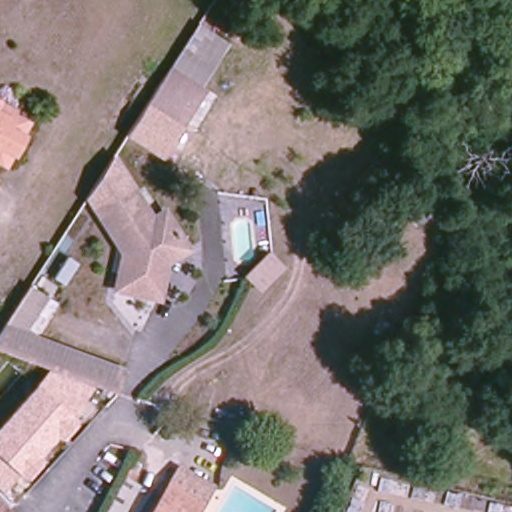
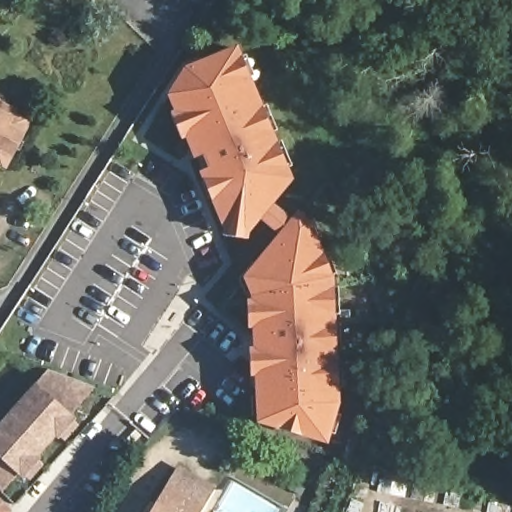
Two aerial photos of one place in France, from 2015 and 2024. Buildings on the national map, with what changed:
demolished [(175,7),(165,0),(179,0),(175,7)]
demolished [(202,88),(207,91),(164,161),(123,137),(197,22),(228,42),(202,88)]
new [(230,236),(231,226),(208,170),(214,167),(209,155),(203,157),(197,145),(177,95),(193,69),(240,47),(295,179),(254,229),(253,239),(230,236)]
new [(260,75),(253,78),(244,56),(250,53),(260,75)]
new [(283,130),(276,133),(265,107),(272,104),(283,130)]
unchanged [(12,117),(9,122),(25,130),(3,171),(0,169),(0,111),(12,117)]
new [(193,135),(187,137),(177,113),(183,111),(193,135)]
new [(297,166),(291,169),(280,142),(287,140),(297,166)]
demolished [(93,214),(82,201),(114,154),(134,191),(93,214)]
demolished [(149,216),(166,205),(194,254),(171,267),(168,303),(116,298),(120,256),(93,214),(134,191),(149,216)]
new [(287,234),(265,216),(275,203),(297,221),(287,234)]
new [(313,223),(336,277),(342,403),(331,441),(265,421),(260,296),(252,277),(303,215),(313,223)]
demolished [(243,279),(271,250),(286,268),(260,296),(243,279)]
demolished [(6,326),(24,332),(126,369),(119,390),(0,347),(0,335),(6,326)]
unchanged [(70,415),(81,425),(65,442),(55,436),(38,457),(45,465),(29,482),(19,475),(3,491),(0,489),(0,426),(51,370),(96,387),(70,415)]
demolished [(222,377),(212,411),(191,405),(201,371),(222,377)]
unchanged [(162,508),(170,494),(180,477),(181,476),(211,493),(200,512),(163,512),(161,511),(162,508)]
unchanged [(4,510),(2,512),(0,512),(0,507),(4,510)]

